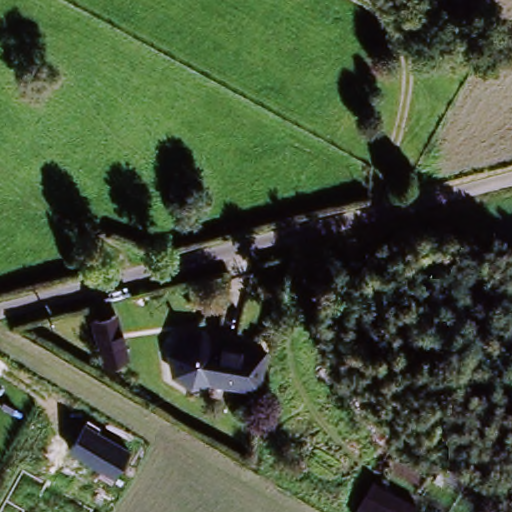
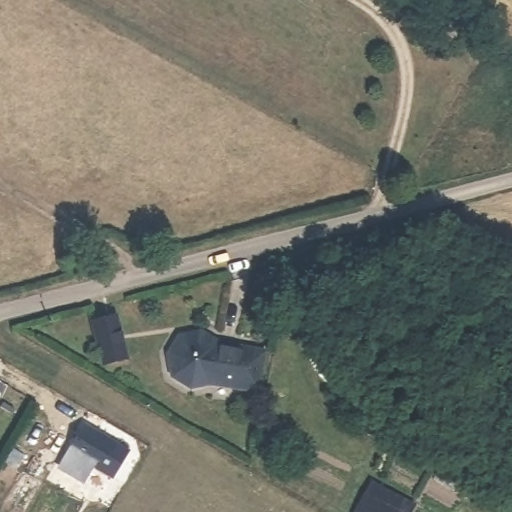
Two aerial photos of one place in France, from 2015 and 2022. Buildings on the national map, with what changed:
unchanged [(135,360),(109,367),(96,318),(123,312),(135,360)]
unchanged [(268,349),(261,395),(212,387),(191,392),(171,379),(166,354),(178,335),(203,329),(218,343),(268,349)]
unchanged [(81,426),(129,452),(115,477),(66,452),(81,426)]
unchanged [(92,512),(1,512),(23,474),(92,512)]
unchanged [(408,512),(349,512),(369,479),(413,505),(408,512)]

